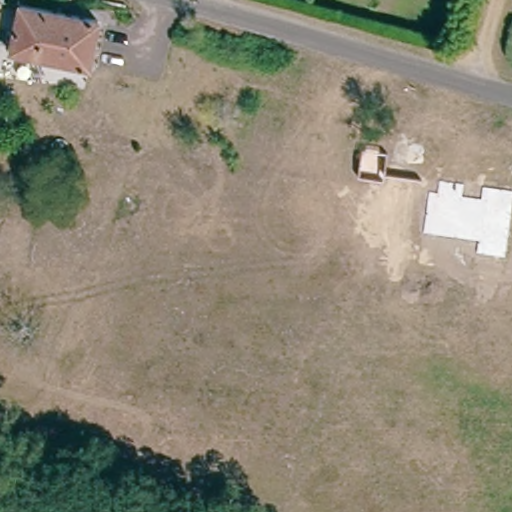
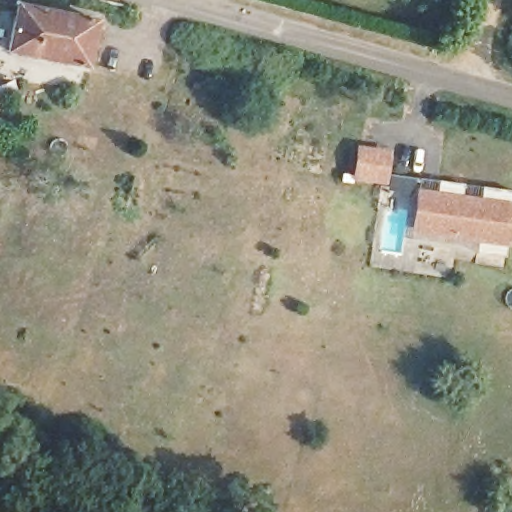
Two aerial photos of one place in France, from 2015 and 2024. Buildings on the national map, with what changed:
unchanged [(91,24),(82,72),(7,53),(17,7),(91,24)]
new [(392,149),(387,185),(352,180),(357,145),(392,149)]
new [(507,247),(505,257),(417,245),(418,235),(412,234),(417,189),(438,192),(440,181),(512,192),(512,234),(510,248),(507,247)]

